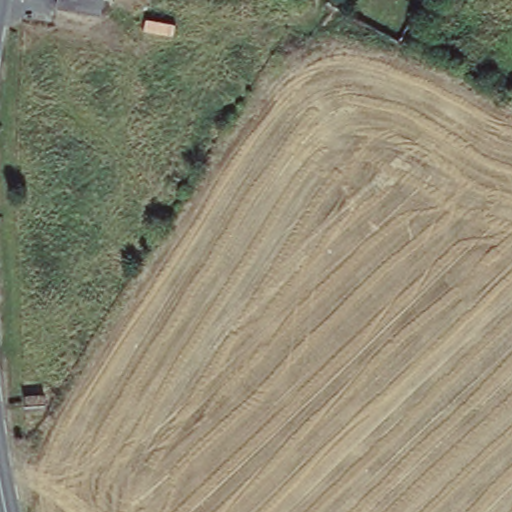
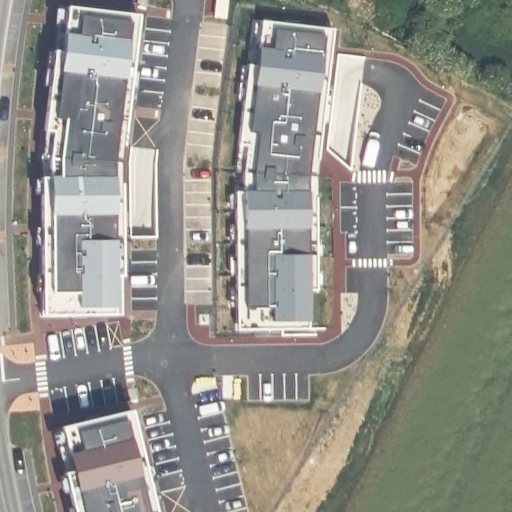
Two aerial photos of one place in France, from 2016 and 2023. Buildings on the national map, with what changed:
demolished [(112,0),(110,11),(64,3),(65,0),(112,0)]
new [(138,15),(120,159),(122,313),(43,312),(41,154),(59,4),(138,15)]
new [(321,21),(306,332),(227,332),(239,17),(321,21)]
new [(130,409),(155,512),(75,512),(54,426),(130,409)]

